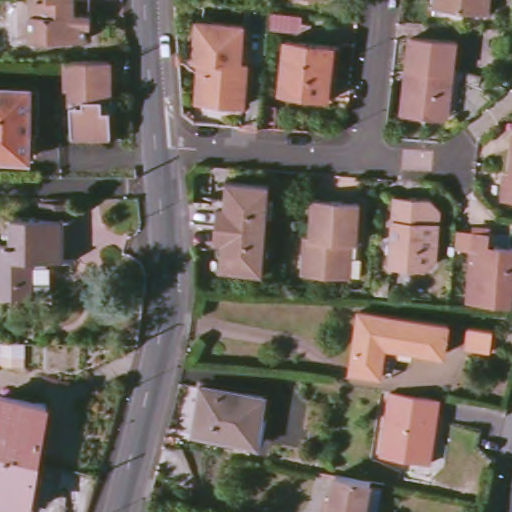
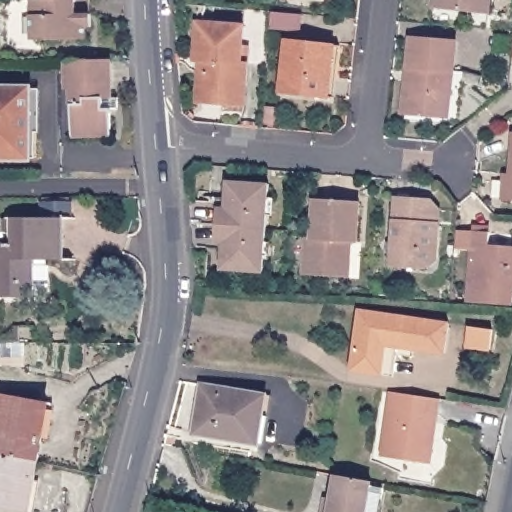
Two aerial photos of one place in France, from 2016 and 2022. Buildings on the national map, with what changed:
unchanged [(97,15),(97,28),(92,28),(92,41),(31,42),(30,0),(80,0),(80,15),(97,15)]
unchanged [(489,0),(487,16),(435,11),(437,0),(489,0)]
unchanged [(279,32),(280,15),(312,17),(310,34),(279,32)]
unchanged [(201,60),(195,60),(197,22),(245,24),(242,63),(247,63),(245,106),(224,103),(199,101),(201,60)]
unchanged [(443,114),(408,111),(403,111),(408,66),(411,35),(456,38),(453,69),(448,114),(443,114)]
unchanged [(333,44),(330,94),(282,91),(285,41),(333,44)]
unchanged [(100,59),(115,59),(115,134),(75,133),(75,88),(71,88),(72,60),(100,59)]
unchanged [(29,158),(0,158),(0,88),(30,88),(29,158)]
unchanged [(512,150),(512,202),(503,201),(505,180),(505,174),(510,174),(512,150)]
unchanged [(252,230),(245,230),(240,229),(238,229),(231,229),(218,228),(218,224),(220,210),(225,210),(232,211),(233,201),(226,200),(227,184),(271,187),(268,231),(260,231),(255,230),(252,230)]
unchanged [(35,298),(0,298),(0,245),(12,245),(13,219),(45,219),(45,197),(68,198),(74,198),(73,220),(67,220),(65,262),(49,261),(52,286),(46,299),(35,298)]
unchanged [(438,261),(427,270),(392,268),(397,198),(432,200),(441,211),(438,261)]
unchanged [(305,273),(307,239),(313,240),(315,201),(362,204),(360,243),(347,242),(345,276),(305,273)]
unchanged [(230,245),(217,245),(218,228),(231,229),(238,229),(240,229),(245,230),(252,230),(255,230),(260,231),(268,231),(265,275),(222,272),(223,256),(230,257),(230,245)]
unchanged [(502,248),(512,249),(512,310),(474,306),(477,254),(461,253),(462,242),(462,234),(479,235),(495,236),(494,250),(501,251),(502,248)]
unchanged [(396,353),(393,376),(380,374),(350,370),(359,310),(448,323),(444,352),(414,348),(413,356),(396,353)]
unchanged [(477,330),(502,334),(499,354),(475,350),(477,330)]
unchanged [(202,384),(268,395),(265,420),(255,418),(251,446),(193,436),(202,384)]
unchanged [(53,394),(42,454),(0,446),(0,430),(7,386),(53,394)]
unchanged [(442,401),(438,418),(432,417),(428,437),(433,444),(429,466),(380,456),(392,394),(442,401)]
unchanged [(33,503),(30,503),(28,512),(0,512),(0,446),(42,454),(33,503)]
unchanged [(337,475),(354,478),(372,482),(371,486),(383,488),(378,512),(329,512),(337,475)]

